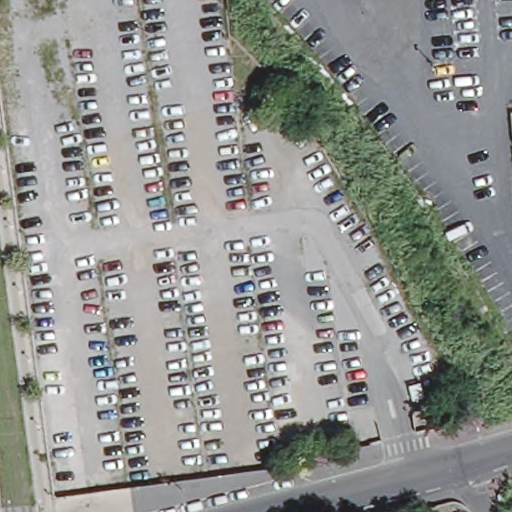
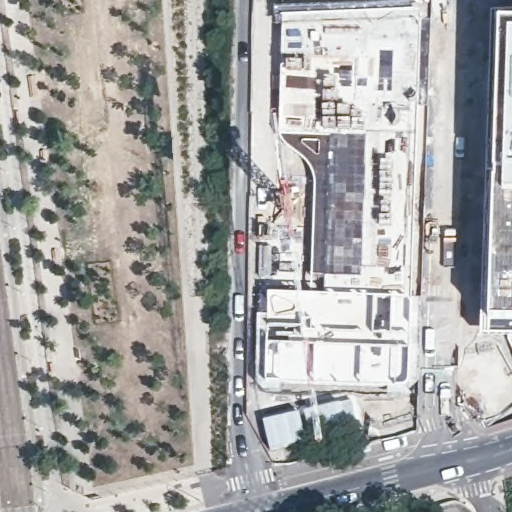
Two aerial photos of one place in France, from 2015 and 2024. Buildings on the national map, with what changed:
new [(492,0),(512,0),(512,17),(492,18),(492,0)]
new [(256,313),(264,313),(265,291),(320,291),(321,282),(310,282),(311,179),(306,166),(292,152),(298,144),(299,138),(279,138),(280,13),(421,10),(420,109),(424,109),(422,182),(423,222),(416,298),(417,322),(412,322),(411,362),(415,362),(414,381),(407,387),(403,388),(395,388),(387,388),(319,384),(281,384),(280,391),(262,389),(259,384),(256,374),(256,313)]
new [(482,341),(492,18),(512,17),(512,350),(508,341),(482,341)]
new [(351,399),(361,433),(313,439),(311,435),(305,437),(299,412),(351,399)]
new [(299,412),(305,437),(306,442),(269,451),(261,420),(299,412)]

